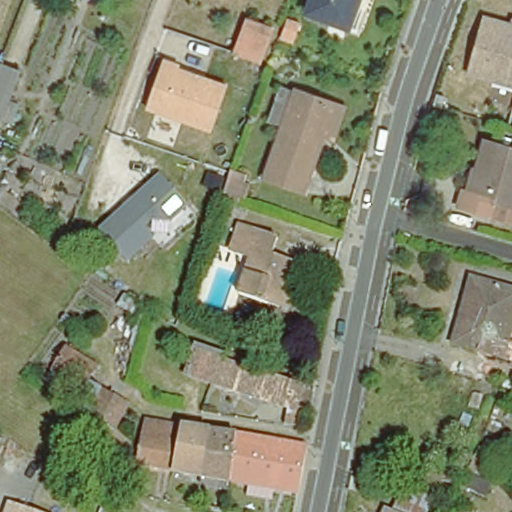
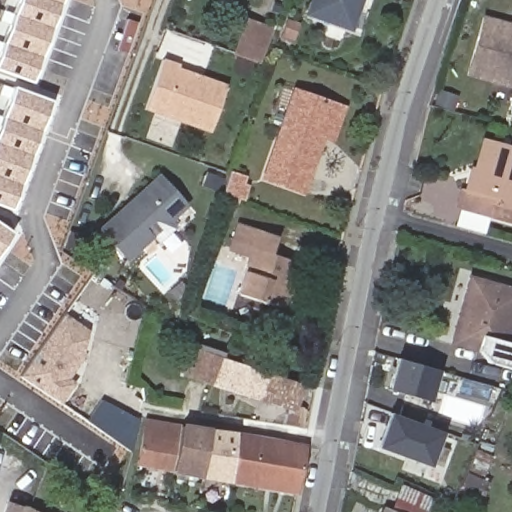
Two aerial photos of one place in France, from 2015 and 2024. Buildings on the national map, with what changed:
new [(0,69),(0,52),(19,0),(60,0),(31,81),(0,69)]
unchanged [(311,0),(357,0),(348,25),(307,10),(311,0)]
unchanged [(482,13),(494,16),(496,10),(512,14),(512,82),(466,69),(482,13)]
unchanged [(288,24),(281,43),(271,39),(277,20),(288,24)]
unchanged [(224,52),(234,23),(262,32),(252,63),(224,52)]
unchanged [(212,134),(147,111),(163,56),(181,61),(177,69),(227,85),(212,134)]
demolished [(0,120),(0,71),(16,77),(0,120)]
new [(0,204),(0,123),(13,88),(50,102),(11,209),(0,204)]
unchanged [(265,179),(297,91),(335,105),(345,108),(333,139),(324,136),(304,193),(265,179)]
new [(512,127),(509,126),(512,116),(512,127)]
unchanged [(458,202),(463,186),(469,188),(485,135),(512,143),(512,217),(491,211),(458,202)]
unchanged [(244,178),(235,203),(221,199),(230,173),(244,178)]
unchanged [(127,260),(96,227),(161,174),(191,206),(127,260)]
new [(12,233),(0,251),(0,225),(12,233)]
unchanged [(293,294),(287,310),(277,307),(239,294),(252,256),(230,248),(238,226),(278,239),(273,254),(300,263),(292,287),(289,293),(293,294)]
unchanged [(462,278),(510,291),(497,339),(493,356),(482,353),(445,343),(462,278)]
new [(82,350),(68,379),(76,384),(65,399),(30,375),(65,315),(87,331),(82,350)]
new [(497,339),(512,343),(512,368),(490,362),(482,353),(493,356),(497,339)]
unchanged [(210,385),(181,376),(189,350),(219,359),(291,381),(284,406),(282,408),(210,385)]
new [(431,401),(390,388),(398,358),(441,371),(431,401)]
new [(100,399),(137,419),(130,451),(87,421),(100,399)]
unchanged [(298,429),(281,425),(284,406),(302,409),(298,429)]
new [(430,467),(377,447),(390,413),(443,433),(430,467)]
demolished [(49,460),(76,417),(99,432),(87,448),(112,466),(94,488),(49,460)]
unchanged [(138,463),(146,421),(181,427),(172,470),(138,463)]
unchanged [(181,427),(210,431),(201,475),(172,470),(181,427)]
unchanged [(232,481),(201,475),(210,431),(240,436),(232,481)]
unchanged [(297,494),(232,481),(240,436),(305,447),(297,494)]
demolished [(461,489),(440,483),(445,465),(467,471),(461,489)]
unchanged [(484,494),(462,488),(468,470),(490,476),(484,494)]
unchanged [(432,501),(427,512),(395,512),(406,490),(432,501)]
unchanged [(46,512),(7,512),(11,501),(46,512)]
unchanged [(385,512),(386,511),(389,512),(385,512)]

